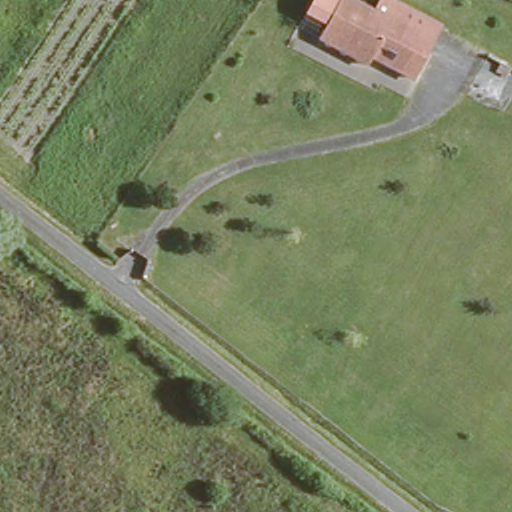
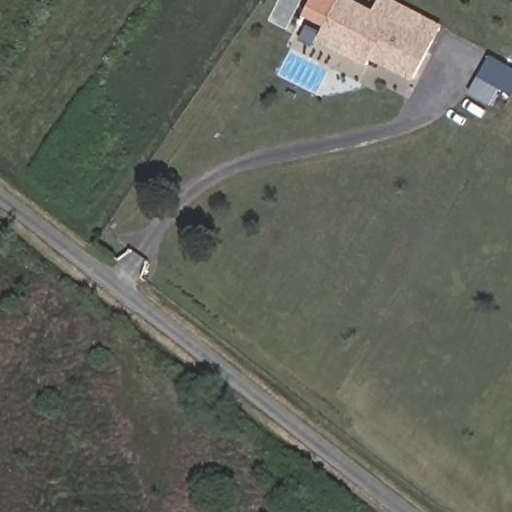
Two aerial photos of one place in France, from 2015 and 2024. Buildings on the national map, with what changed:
unchanged [(323,45),(333,24),(317,15),(325,0),(341,0),(347,3),(348,0),(374,13),(380,0),(391,0),(392,1),(445,29),(414,82),(371,60),(366,68),(323,45)]
new [(500,89),(492,106),(469,92),(491,56),(512,68),(512,95),(512,96),(500,89)]

